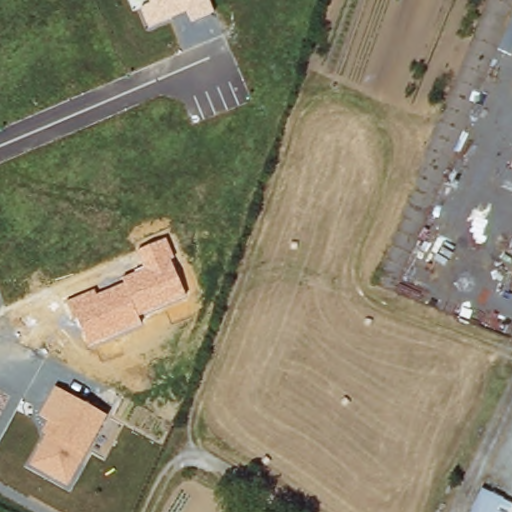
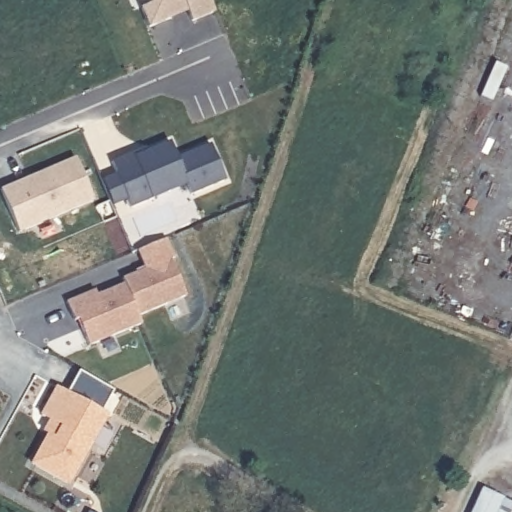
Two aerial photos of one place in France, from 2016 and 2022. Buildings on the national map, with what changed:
unchanged [(190,22),(185,13),(147,30),(138,10),(149,5),(147,0),(210,0),(215,12),(190,22)]
new [(189,194),(186,185),(130,208),(126,199),(112,205),(101,177),(115,172),(110,162),(169,141),(176,156),(209,144),(224,180),(189,194)]
new [(70,162),(89,205),(14,237),(0,206),(0,193),(70,162)]
unchanged [(176,260),(170,262),(185,296),(137,317),(141,326),(89,346),(77,321),(73,322),(63,302),(95,288),(97,293),(124,283),(121,277),(144,269),(137,250),(166,239),(176,260)]
unchanged [(45,435),(40,432),(47,420),(39,415),(55,386),(107,415),(85,454),(69,485),(30,465),(45,435)]
unchanged [(512,512),(469,512),(481,490),(512,505),(512,512)]

